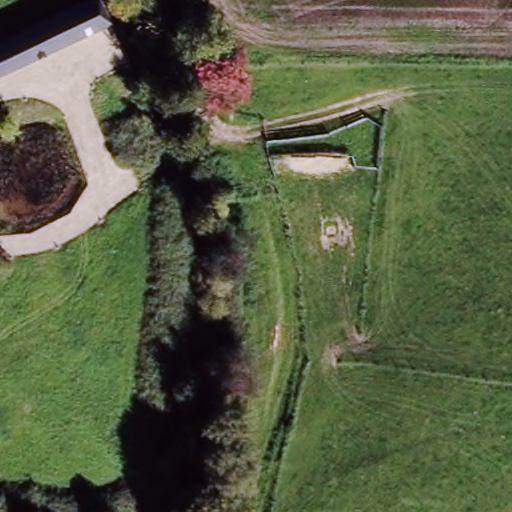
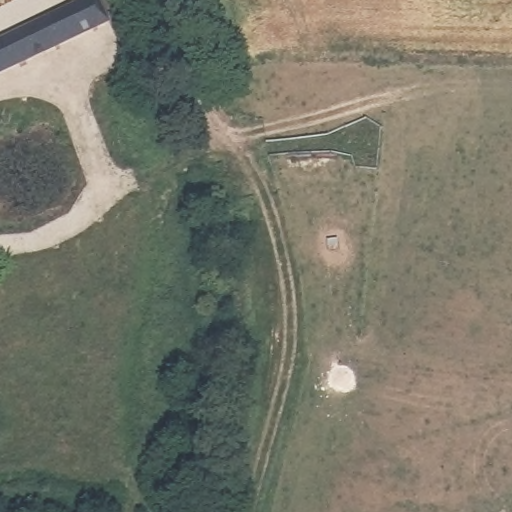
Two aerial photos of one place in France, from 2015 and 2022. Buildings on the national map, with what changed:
unchanged [(0,70),(0,41),(87,0),(96,0),(105,20),(0,70)]

